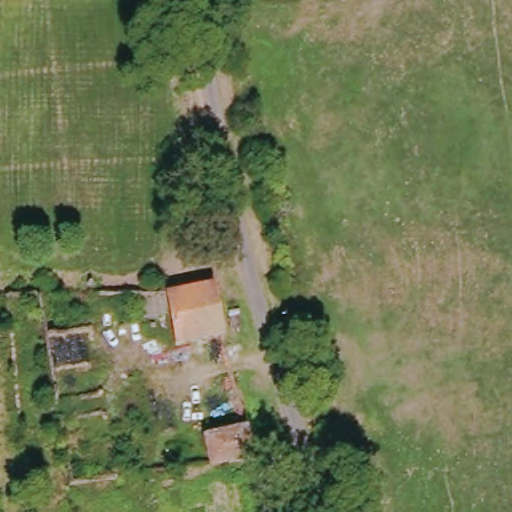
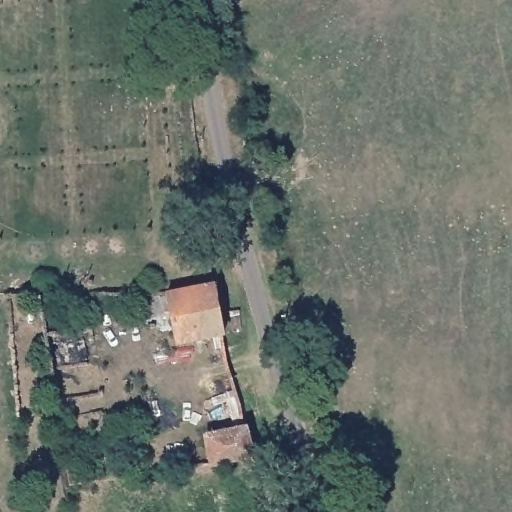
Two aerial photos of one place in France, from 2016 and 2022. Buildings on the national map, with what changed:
unchanged [(175,348),(163,295),(208,289),(220,338),(175,348)]
unchanged [(207,466),(202,439),(241,429),(248,459),(207,466)]

